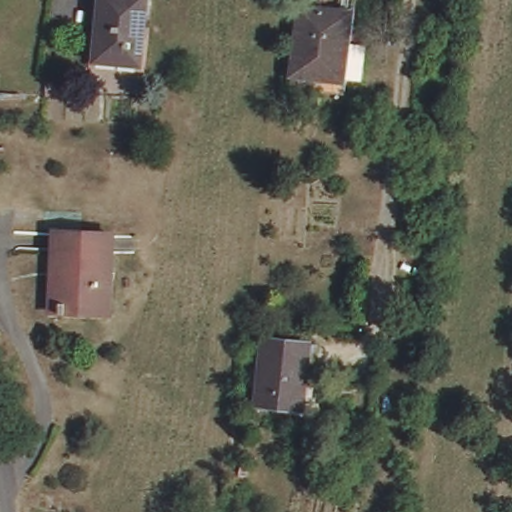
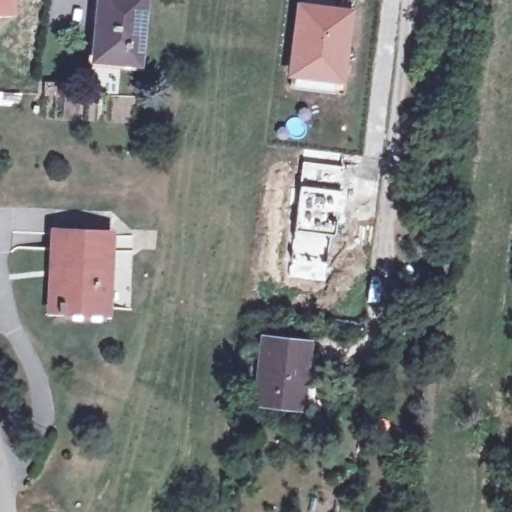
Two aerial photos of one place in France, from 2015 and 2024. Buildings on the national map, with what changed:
new [(0,16),(0,0),(13,0),(13,15),(0,16)]
unchanged [(105,0),(144,0),(144,2),(147,3),(139,72),(97,68),(105,0)]
unchanged [(292,78),(299,9),(347,18),(339,85),(292,78)]
unchanged [(49,275),(52,238),(107,241),(103,317),(83,315),(82,311),(68,310),(67,317),(55,315),(57,276),(49,275)]
unchanged [(255,407),(262,341),(305,345),(299,411),(255,407)]

